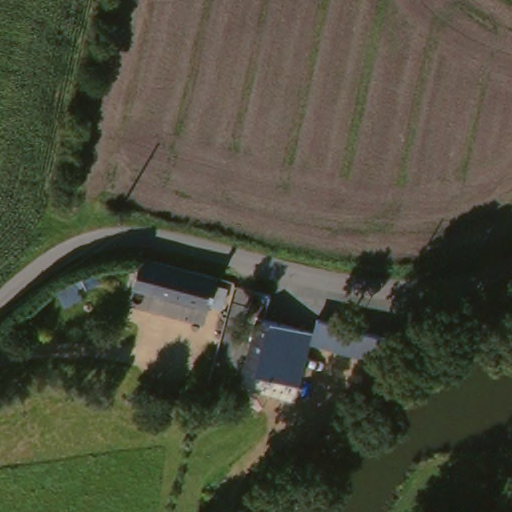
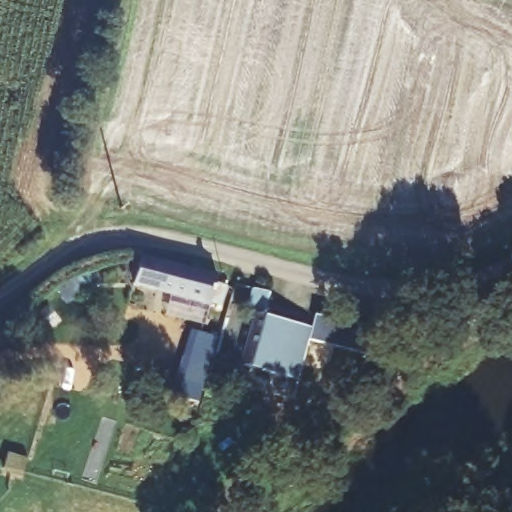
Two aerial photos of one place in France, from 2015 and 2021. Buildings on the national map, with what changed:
unchanged [(131,284),(139,255),(214,275),(206,303),(131,284)]
unchanged [(239,364),(253,315),(309,329),(294,377),(239,364)]
new [(220,339),(210,377),(208,376),(205,388),(178,380),(189,330),(220,339)]

